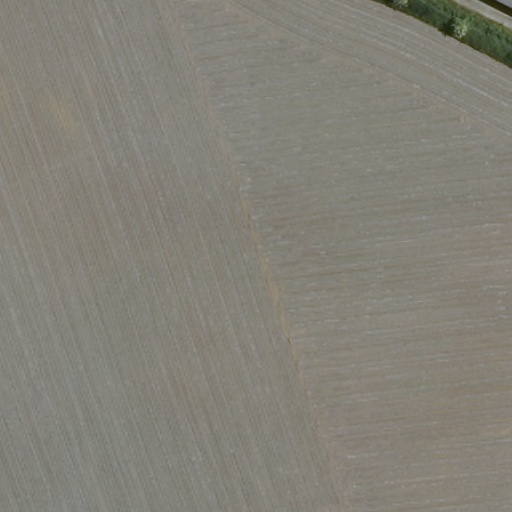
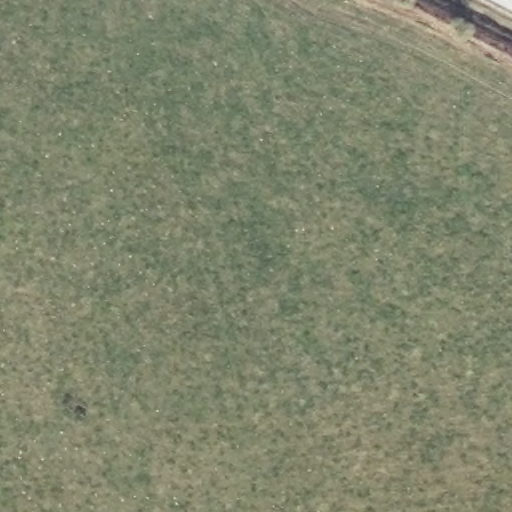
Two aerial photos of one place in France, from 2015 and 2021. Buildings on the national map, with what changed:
unchanged [(487,0),(512,0),(512,13),(487,0)]

